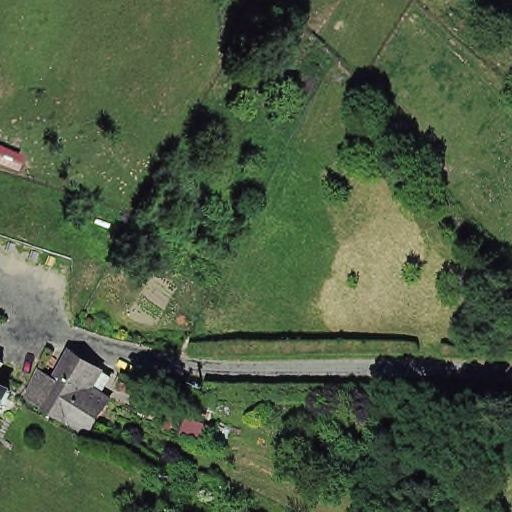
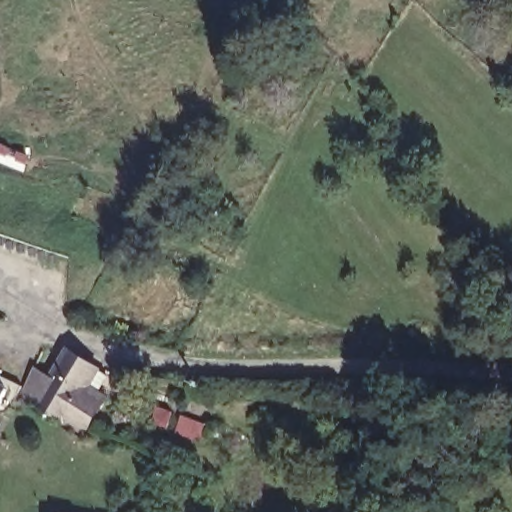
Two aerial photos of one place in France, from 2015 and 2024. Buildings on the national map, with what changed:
unchanged [(26,410),(12,401),(27,376),(43,390),(65,363),(72,364),(94,377),(81,394),(100,407),(74,441),(72,446),(42,423),(26,410)]
unchanged [(6,394),(0,406),(0,391),(6,394)]

